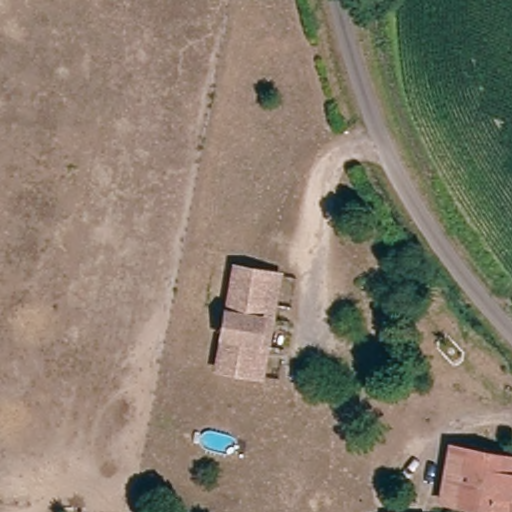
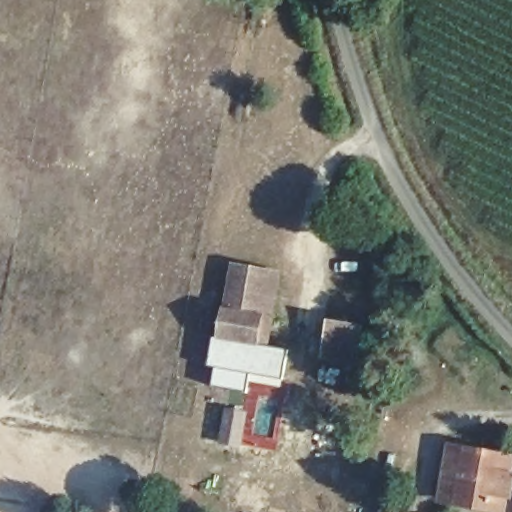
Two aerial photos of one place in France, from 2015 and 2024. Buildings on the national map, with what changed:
unchanged [(237,269),(271,275),(251,376),(217,370),(237,269)]
unchanged [(499,461),(490,512),(459,512),(447,510),(458,454),(499,461)]
unchanged [(512,464),(512,512),(490,512),(499,461),(512,464)]

